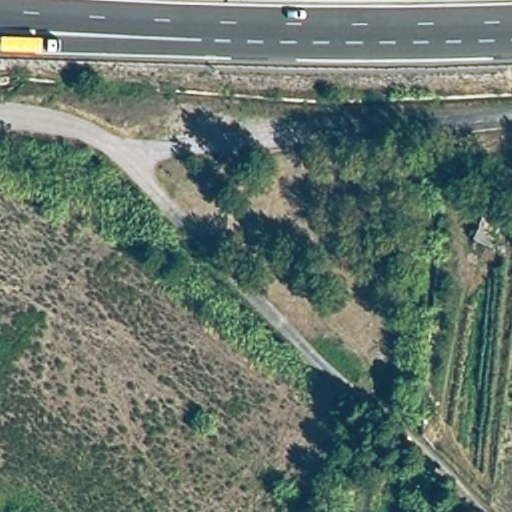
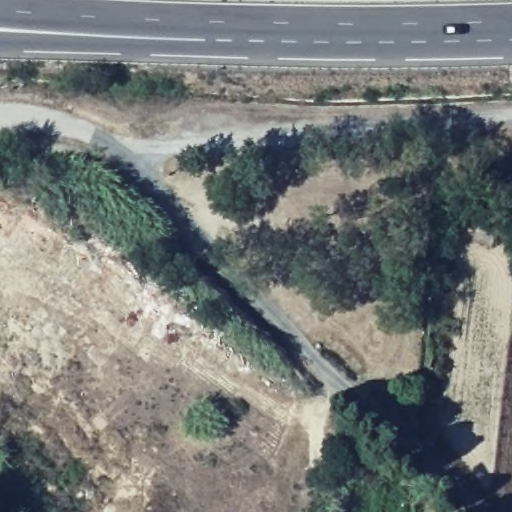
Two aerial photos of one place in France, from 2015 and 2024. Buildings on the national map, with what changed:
unchanged [(482,210),(503,215),(495,236),(474,227),(482,210)]
unchanged [(413,378),(412,400),(395,401),(395,382),(413,378)]

